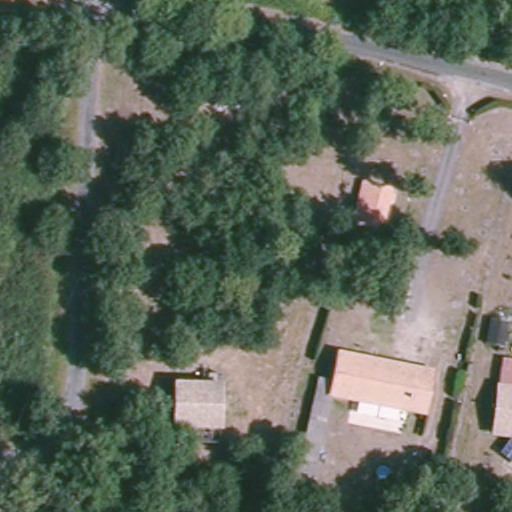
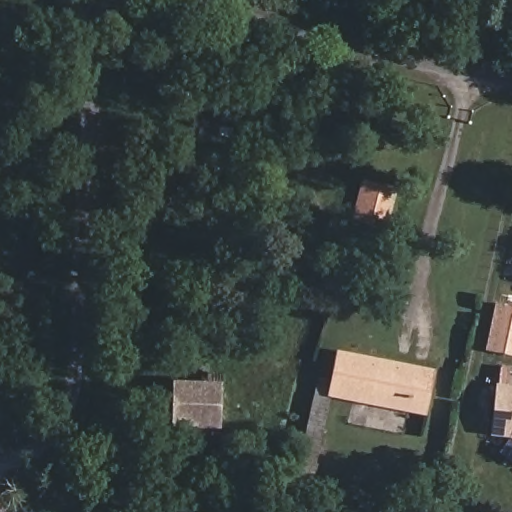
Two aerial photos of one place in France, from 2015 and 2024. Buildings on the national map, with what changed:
unchanged [(387,185),(376,228),(351,219),(363,177),(387,185)]
new [(512,356),(485,351),(495,304),(512,307),(512,356)]
unchanged [(390,409),(315,389),(325,345),(386,361),(419,370),(413,394),(409,414),(390,409)]
unchanged [(199,442),(197,428),(172,426),(172,383),(205,383),(206,373),(218,373),(217,384),(218,428),(218,443),(199,442)]
unchanged [(489,437),(495,385),(512,386),(512,440),(509,438),(489,437)]

